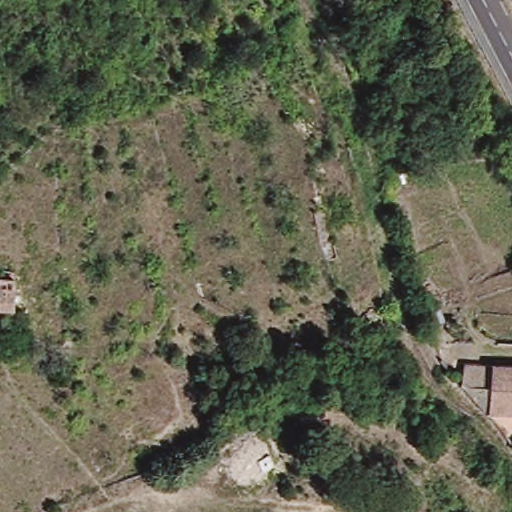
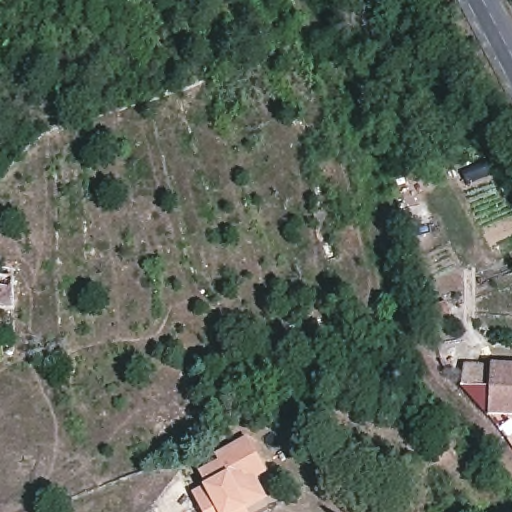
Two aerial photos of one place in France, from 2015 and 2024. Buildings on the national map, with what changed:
unchanged [(11,273),(9,292),(0,292),(0,273),(11,273)]
unchanged [(472,405),(475,379),(451,377),(453,354),(489,357),(508,358),(512,358),(512,411),(477,409),(472,405)]
demolished [(271,460),(232,481),(215,445),(255,422),(271,460)]
new [(189,492),(206,484),(199,472),(216,462),(214,458),(249,439),(264,467),(253,473),(263,490),(221,512),(200,512),(189,492)]
new [(241,512),(221,512),(238,504),(241,512)]

